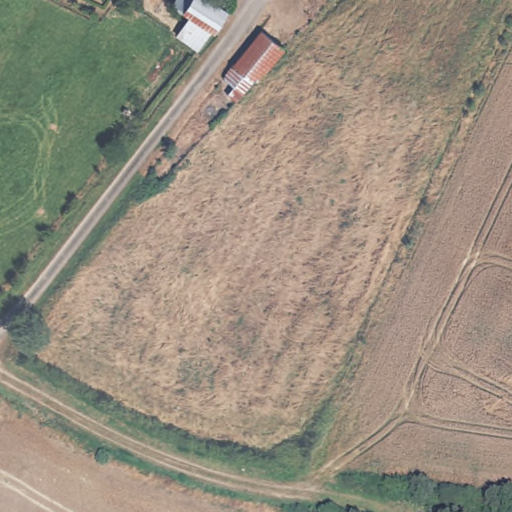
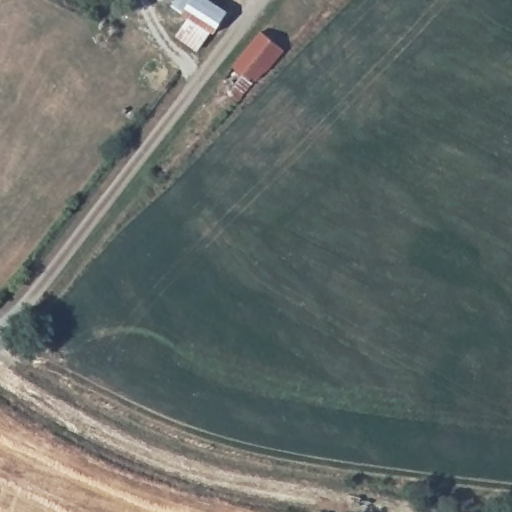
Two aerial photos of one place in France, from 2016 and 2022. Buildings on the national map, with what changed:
unchanged [(187,17),(171,6),(176,0),(208,0),(226,12),(212,34),(208,31),(195,49),(175,36),(187,17)]
unchanged [(281,45),(233,101),(227,98),(236,85),(227,78),(264,33),(281,45)]

